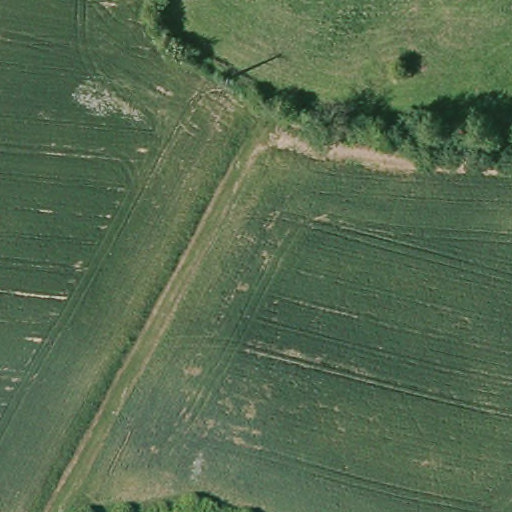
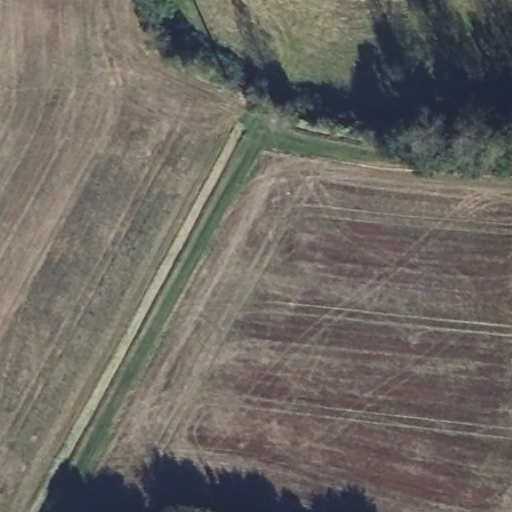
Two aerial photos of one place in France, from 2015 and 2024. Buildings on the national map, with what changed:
[]

